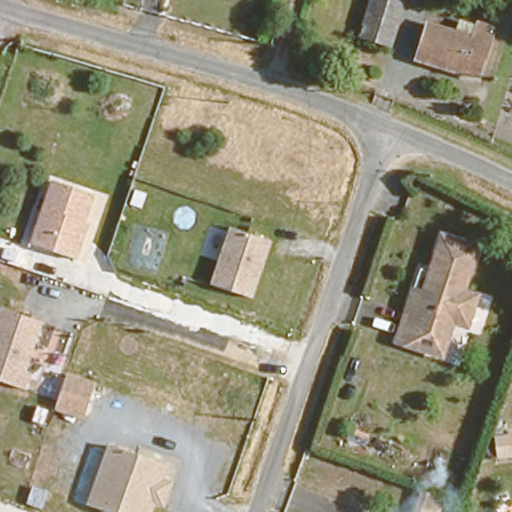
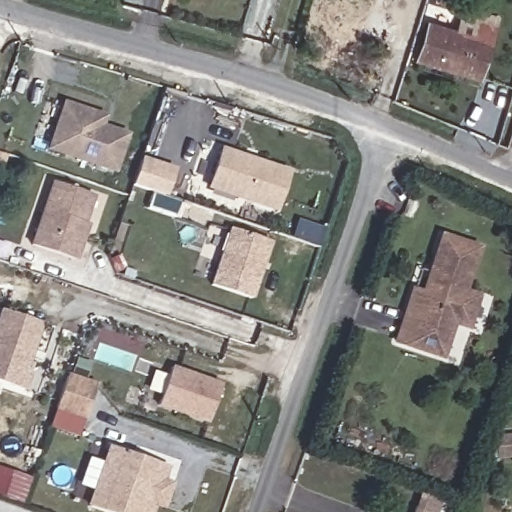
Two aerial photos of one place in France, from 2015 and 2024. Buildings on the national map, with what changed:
demolished [(56,0),(88,0),(84,10),(56,0)]
unchanged [(370,0),(407,0),(393,48),(359,39),(370,0)]
unchanged [(411,58),(419,25),(465,37),(468,27),(487,32),(474,77),(411,58)]
new [(107,115),(104,125),(129,133),(116,173),(45,149),(63,100),(107,115)]
new [(288,169),(274,211),(207,187),(220,146),(288,169)]
new [(175,167),(166,194),(133,183),(141,156),(175,167)]
unchanged [(75,261),(31,246),(53,181),(98,195),(75,261)]
unchanged [(252,300),(209,286),(229,228),(272,240),(252,300)]
unchanged [(472,238),(463,290),(477,292),(472,325),(453,322),(447,356),(398,348),(394,348),(404,289),(418,290),(429,229),(438,231),(472,238)]
unchanged [(33,374),(28,389),(0,381),(0,316),(3,308),(44,321),(29,373),(33,374)]
new [(169,367),(219,384),(207,421),(157,405),(169,367)]
unchanged [(84,420),(57,412),(70,374),(96,382),(84,420)]
unchanged [(165,480),(174,483),(165,510),(155,507),(154,512),(101,512),(88,508),(108,445),(171,467),(165,480)]
unchanged [(447,500),(443,512),(414,512),(422,491),(447,500)]

